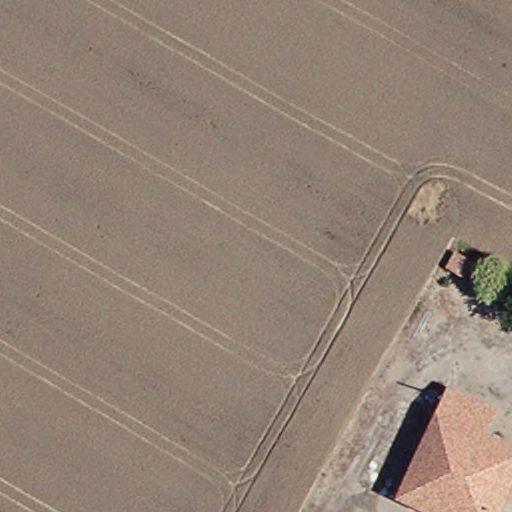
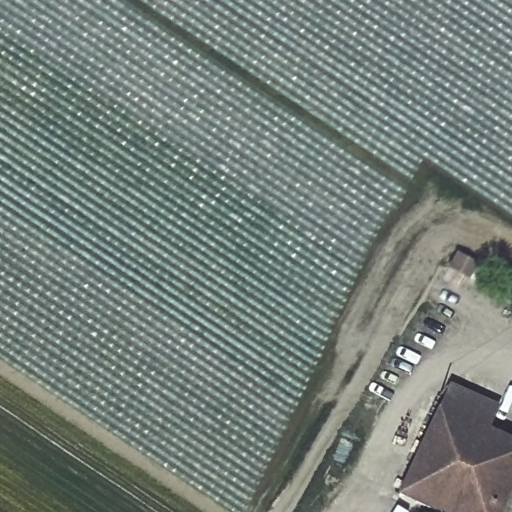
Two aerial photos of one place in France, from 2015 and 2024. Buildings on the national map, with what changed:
unchanged [(477,260),(466,282),(441,270),(455,247),(477,260)]
unchanged [(438,512),(401,495),(450,380),(467,387),(495,402),(486,426),(512,441),(512,496),(504,512),(438,512)]

